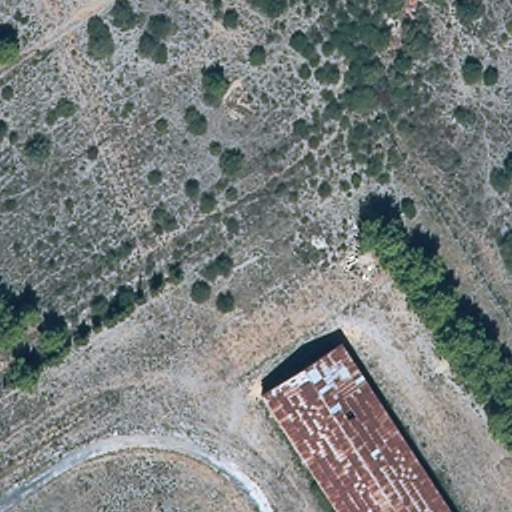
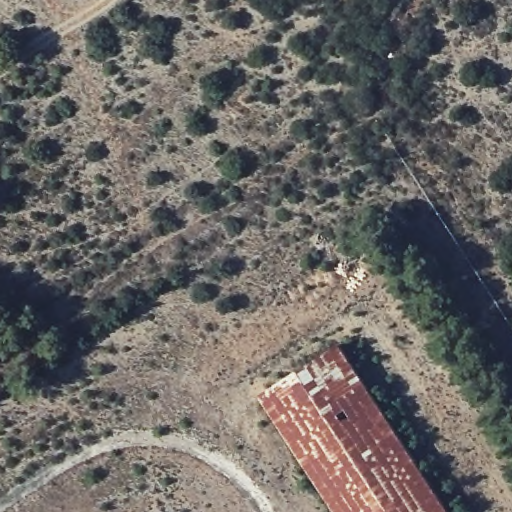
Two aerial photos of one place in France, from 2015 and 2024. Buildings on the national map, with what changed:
unchanged [(337,335),(454,512),(335,512),(255,389),(337,335)]

